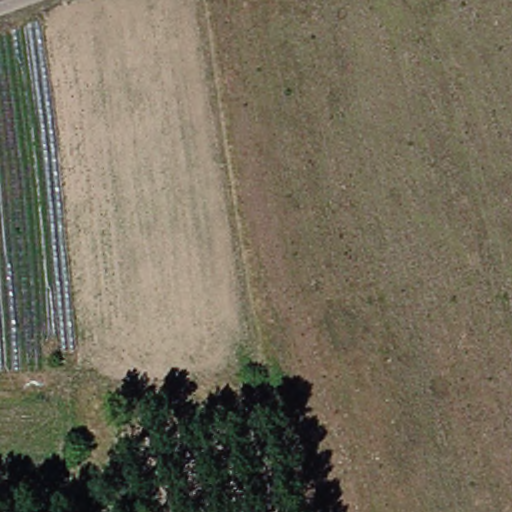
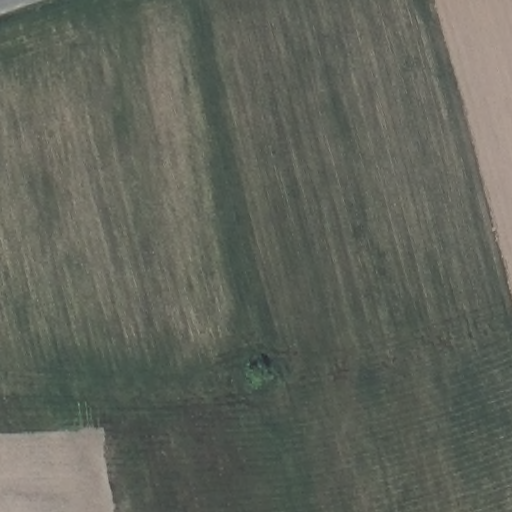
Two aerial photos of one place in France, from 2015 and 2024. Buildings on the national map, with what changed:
[]

